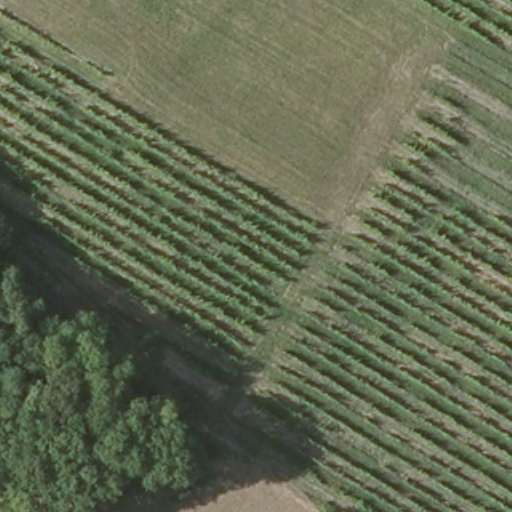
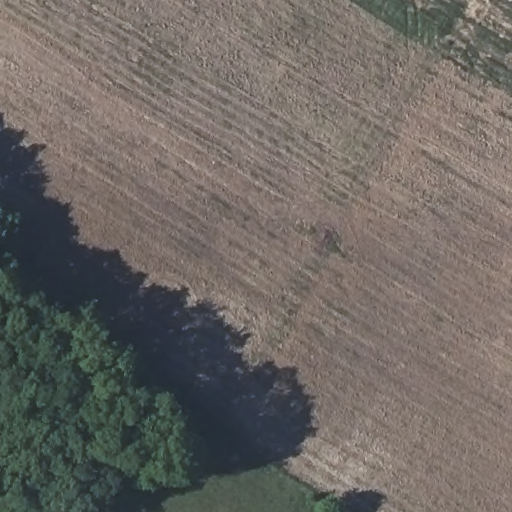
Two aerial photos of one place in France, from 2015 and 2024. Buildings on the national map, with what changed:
[]

